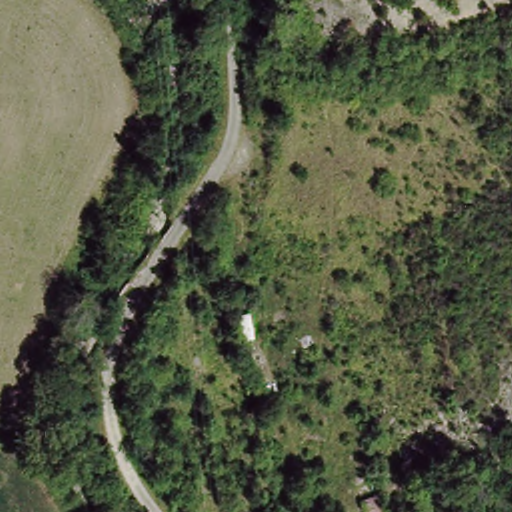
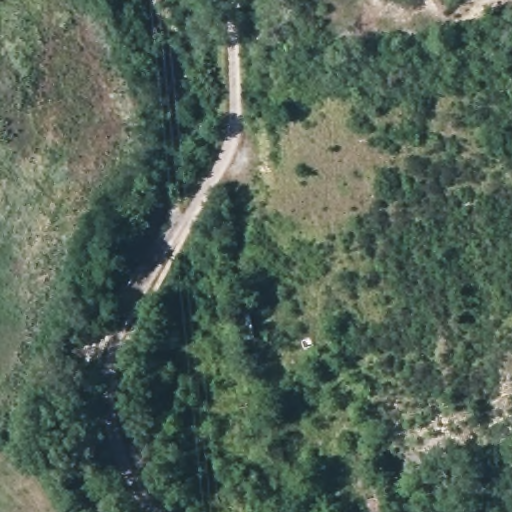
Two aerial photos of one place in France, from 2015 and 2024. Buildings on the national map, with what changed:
unchanged [(352,504),(350,493),(347,482),(370,477),(372,489),(375,499),(352,504)]

